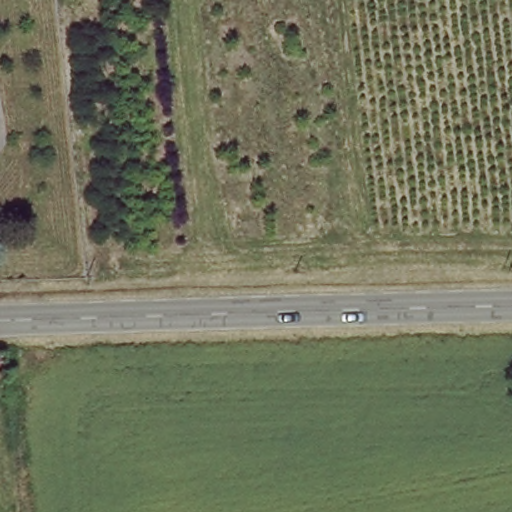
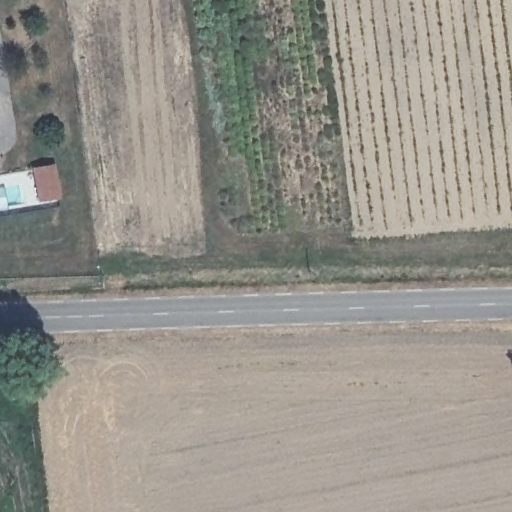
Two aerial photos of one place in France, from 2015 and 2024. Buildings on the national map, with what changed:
new [(52,167),(57,197),(40,200),(35,170),(52,167)]

